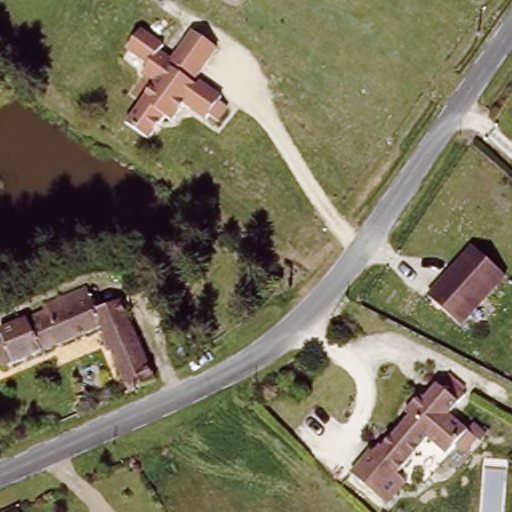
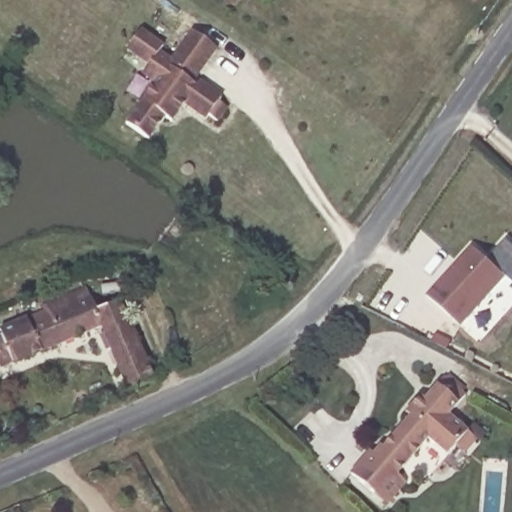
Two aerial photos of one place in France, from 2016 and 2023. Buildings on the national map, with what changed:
unchanged [(217,49),(197,79),(221,97),(207,121),(180,105),(150,143),(125,128),(151,89),(136,74),(141,66),(125,53),(141,30),(175,53),(190,30),(217,49)]
unchanged [(461,321),(427,289),(471,242),(505,273),(461,321)]
unchanged [(0,375),(0,374),(0,346),(38,330),(33,318),(82,297),(85,304),(103,297),(110,312),(120,307),(121,309),(136,303),(147,330),(133,336),(150,378),(125,389),(101,332),(0,375)]
unchanged [(468,394),(460,402),(451,413),(466,427),(479,436),(478,438),(470,450),(460,441),(451,452),(434,437),(400,473),(408,481),(393,499),(355,471),(372,448),(380,452),(416,414),(410,409),(421,396),(428,400),(445,375),(468,394)]

